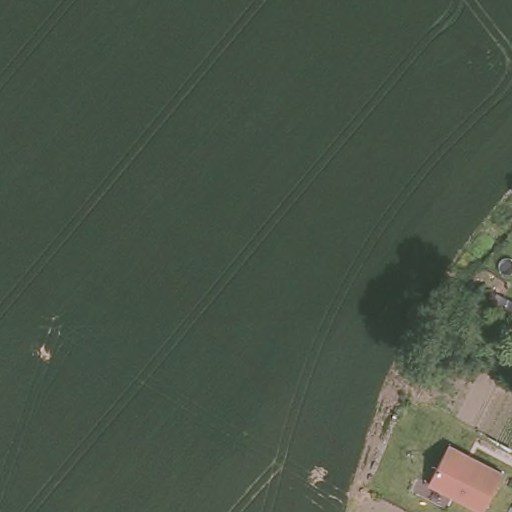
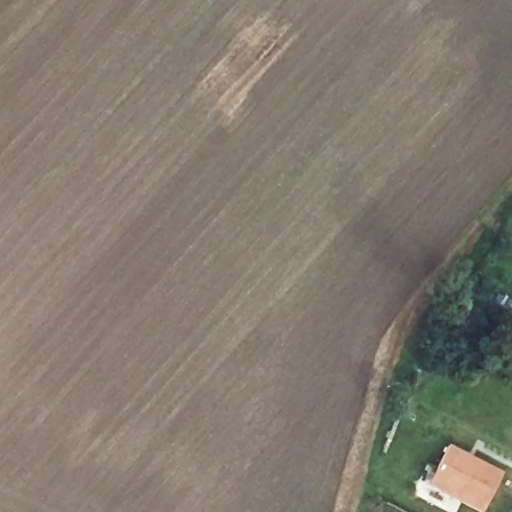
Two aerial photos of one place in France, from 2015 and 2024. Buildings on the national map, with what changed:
unchanged [(505,472),(484,512),(481,512),(429,486),(451,444),(505,472)]

